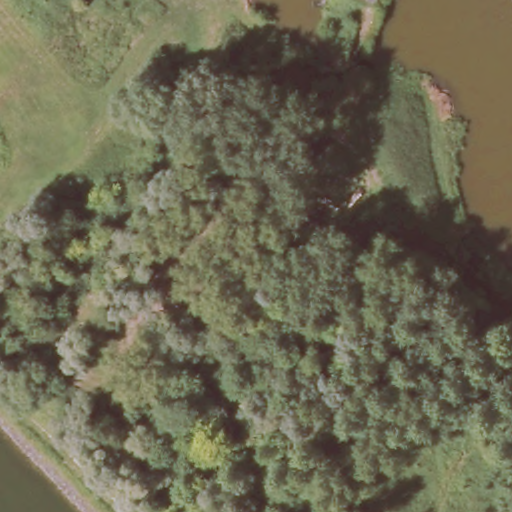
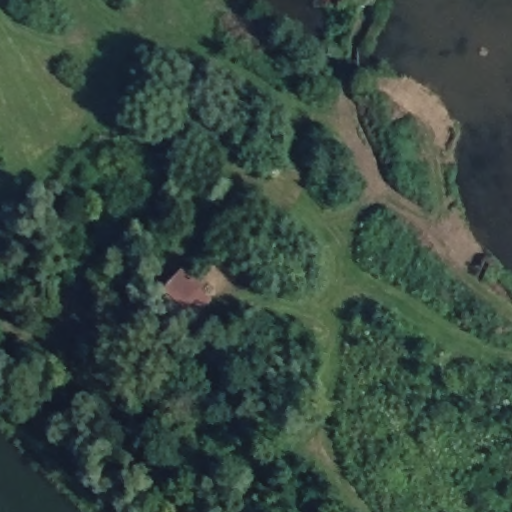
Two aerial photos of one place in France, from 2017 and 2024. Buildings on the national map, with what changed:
unchanged [(182,270),(203,287),(183,310),(162,292),(182,270)]

